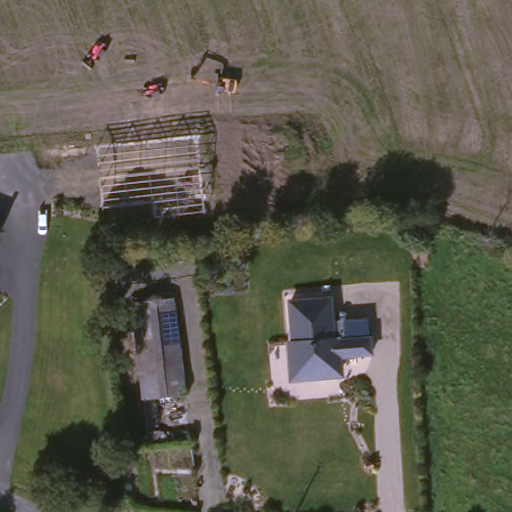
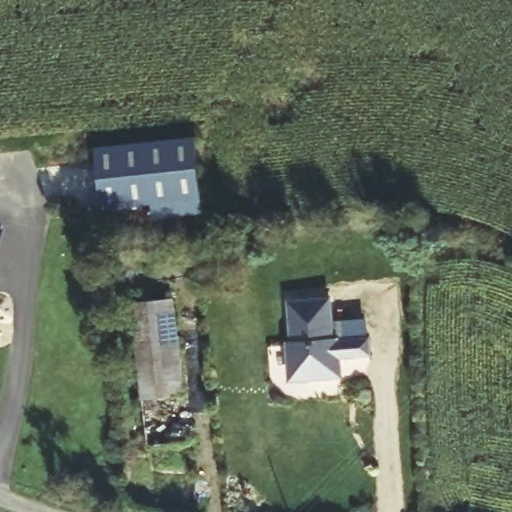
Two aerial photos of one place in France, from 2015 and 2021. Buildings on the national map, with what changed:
new [(104,209),(99,149),(199,141),(204,201),(205,215),(154,219),(154,204),(104,209)]
unchanged [(5,224),(0,237),(0,222),(5,224)]
unchanged [(175,292),(184,389),(141,393),(132,295),(175,292)]
unchanged [(334,293),(336,333),(341,333),(341,336),(373,334),(373,351),(342,353),(339,360),(339,372),(311,373),(304,369),(296,370),(295,365),(291,358),(290,346),(294,338),(294,335),(292,295),(334,293)]

